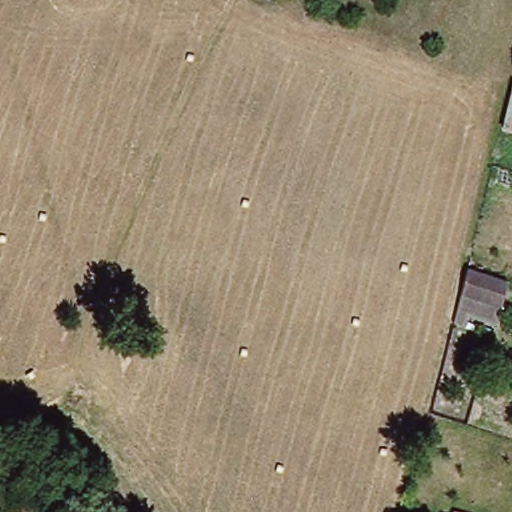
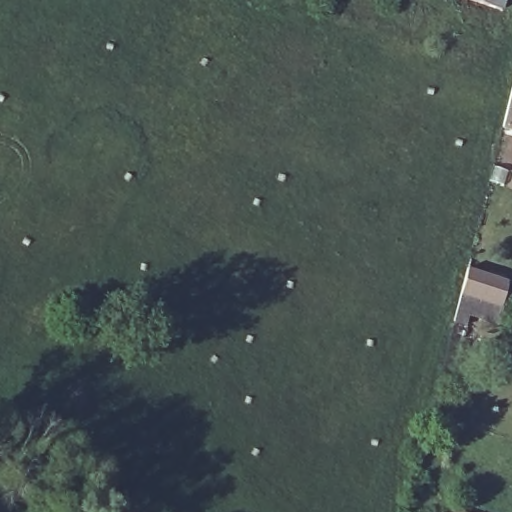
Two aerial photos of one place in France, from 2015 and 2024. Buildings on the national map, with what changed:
new [(469,0),(506,0),(502,11),(469,0)]
unchanged [(496,305),(460,295),(466,270),(503,281),(496,305)]
unchanged [(453,511),(456,512),(452,512),(453,511)]

